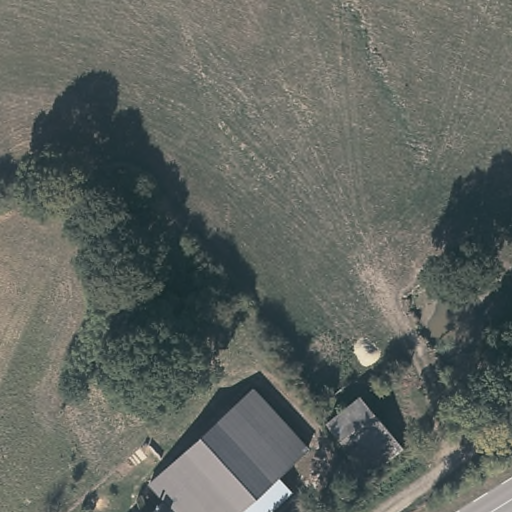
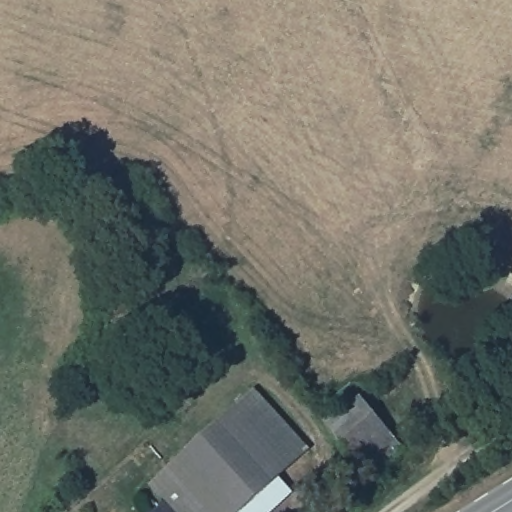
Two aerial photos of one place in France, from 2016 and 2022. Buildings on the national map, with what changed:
unchanged [(278,476),(291,491),(269,512),(175,512),(163,498),(147,481),(254,387),(308,448),(278,476)]
unchanged [(400,442),(365,473),(325,422),(360,394),(400,442)]
unchanged [(148,512),(163,498),(175,512),(148,512)]

